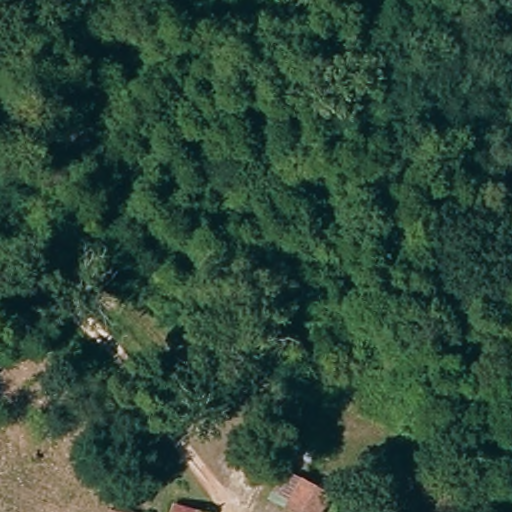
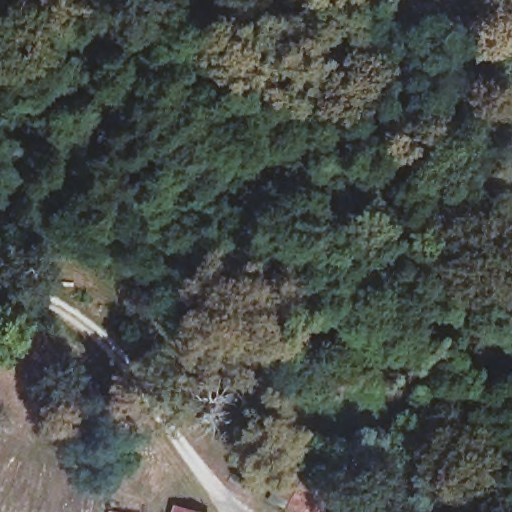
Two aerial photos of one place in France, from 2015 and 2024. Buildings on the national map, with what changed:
unchanged [(313,512),(298,512),(285,506),(298,480),(323,492),(313,512)]
unchanged [(184,507),(195,512),(182,512),(184,507)]

